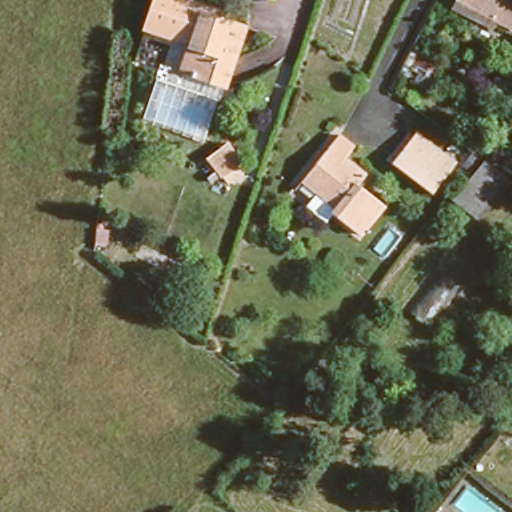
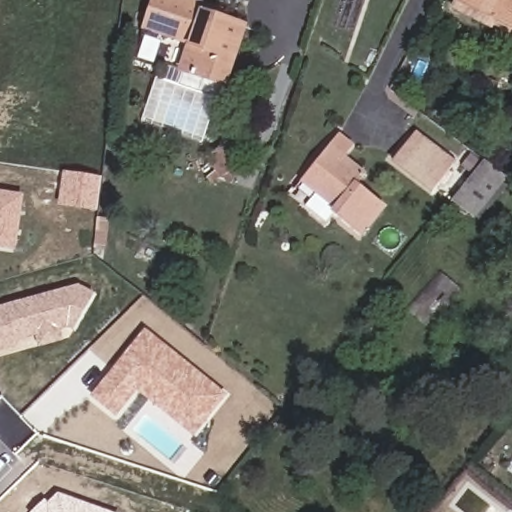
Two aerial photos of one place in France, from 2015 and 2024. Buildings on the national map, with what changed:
unchanged [(178,65),(189,36),(144,20),(151,0),(202,0),(214,5),(212,11),(240,21),(218,80),(178,65)]
unchanged [(468,0),(512,0),(512,6),(506,19),(468,0)]
unchanged [(454,157),(434,181),(395,149),(416,125),(454,157)]
unchanged [(308,205),(322,188),(299,170),(337,126),(349,136),(340,147),(369,169),(362,178),(389,199),(362,233),(335,212),(328,221),(308,205)]
unchanged [(221,173),(210,159),(230,144),(241,159),(221,173)]
unchanged [(474,211),(454,195),(484,155),(504,171),(474,211)]
new [(63,171),(101,178),(96,211),(58,206),(63,171)]
new [(15,252),(0,249),(0,192),(23,196),(15,252)]
new [(68,328),(60,330),(63,341),(39,348),(35,337),(19,342),(20,346),(0,352),(0,306),(78,284),(94,294),(72,331),(68,328)]
new [(137,391),(116,418),(90,397),(144,329),(227,395),(194,437),(137,391)]
new [(44,500),(46,502),(58,493),(110,512),(31,512),(44,500)]

